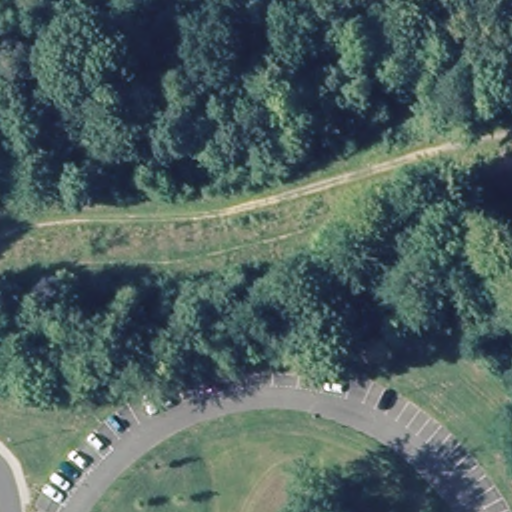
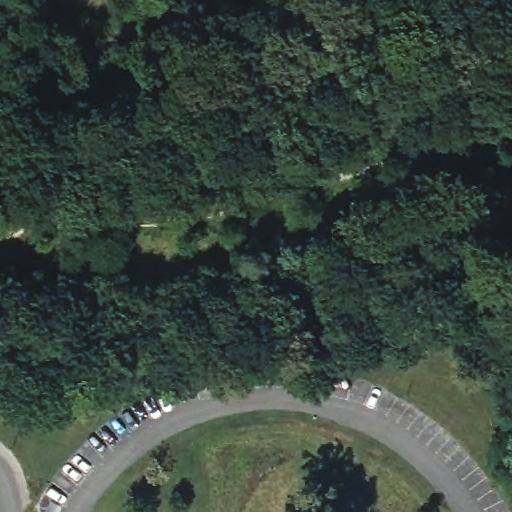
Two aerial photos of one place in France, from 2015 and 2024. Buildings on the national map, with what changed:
[]

